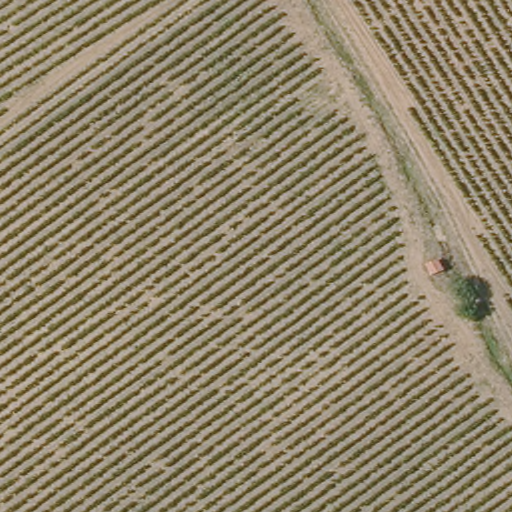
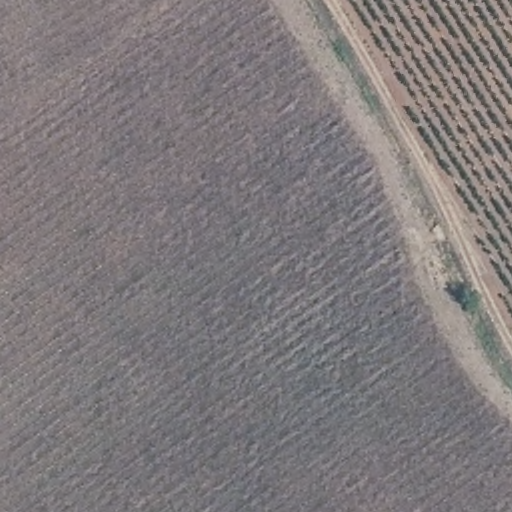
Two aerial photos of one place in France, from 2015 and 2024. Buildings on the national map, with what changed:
unchanged [(452,276),(437,286),(430,277),(446,267),(452,276)]

